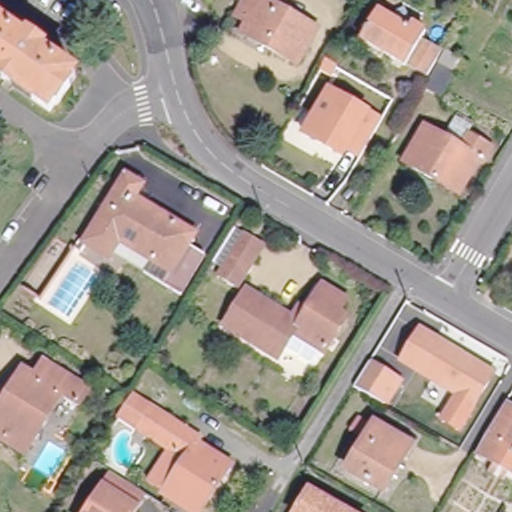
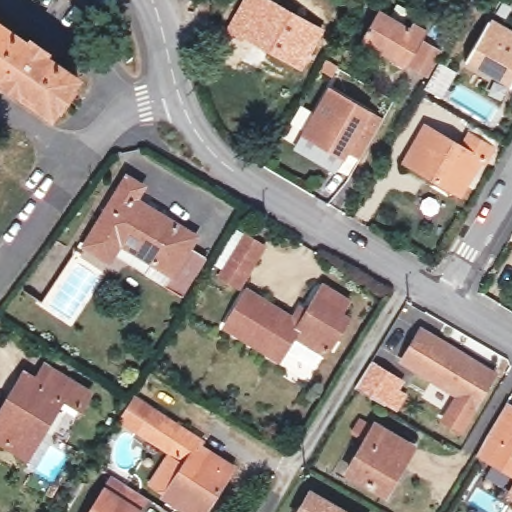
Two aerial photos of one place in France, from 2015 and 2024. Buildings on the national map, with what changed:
unchanged [(247,0),(273,0),(321,28),(300,62),(245,31),(250,21),(239,13),(247,0)]
unchanged [(373,50),(356,40),(376,6),(408,25),(411,21),(422,28),(417,36),(436,49),(422,72),(377,46),(373,50)]
new [(512,28),(512,84),(511,86),(510,91),(465,66),(466,61),(492,16),(512,28)]
unchanged [(0,77),(0,22),(29,42),(31,38),(51,52),(47,56),(81,78),(56,115),(0,77)]
unchanged [(328,57),(347,69),(340,79),(321,68),(328,57)]
unchanged [(435,59),(451,68),(438,89),(422,79),(435,59)]
unchanged [(348,146),(345,154),(306,131),(332,88),(383,119),(362,155),(348,146)]
unchanged [(406,163),(426,125),(461,145),(468,133),(492,147),(485,161),(481,159),(460,195),(406,163)]
unchanged [(187,248),(200,256),(175,300),(160,291),(168,277),(116,248),(107,261),(82,246),(125,177),(140,185),(130,202),(141,209),(192,240),(187,248)]
unchanged [(237,288),(220,276),(231,257),(223,253),(237,229),(246,234),(264,246),(237,288)]
unchanged [(227,327),(247,294),(250,291),(296,319),(302,309),(310,313),(325,288),(346,300),(338,313),(348,321),(328,355),(297,336),(281,360),(227,327)]
unchanged [(420,370),(421,368),(398,355),(416,326),(439,339),(441,337),(501,373),(467,430),(450,420),(464,396),(420,370)]
unchanged [(409,378),(393,405),(362,387),(378,360),(409,378)]
unchanged [(30,452),(0,435),(0,417),(26,373),(37,380),(46,365),(90,392),(81,408),(71,402),(63,397),(30,452)]
unchanged [(473,453),(501,406),(512,412),(512,475),(473,453)]
unchanged [(176,457),(140,435),(120,422),(126,411),(146,424),(155,411),(205,442),(202,446),(235,466),(206,512),(190,512),(170,499),(173,493),(159,483),(176,457)]
unchanged [(386,490),(350,468),(371,434),(358,427),(366,414),(377,421),(413,443),(386,490)]
unchanged [(115,479),(150,500),(142,512),(94,512),(115,479)]
unchanged [(349,512),(295,512),(310,489),(349,512)]

